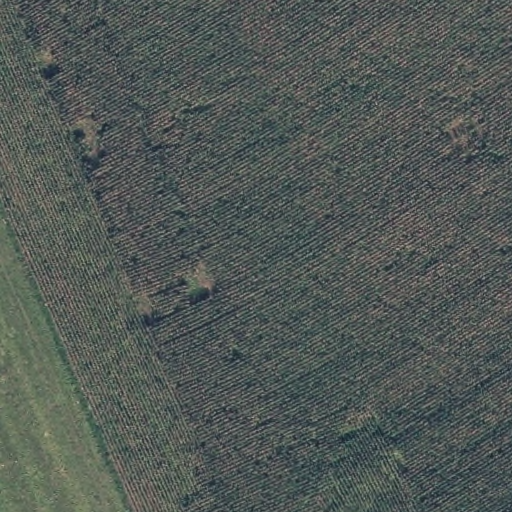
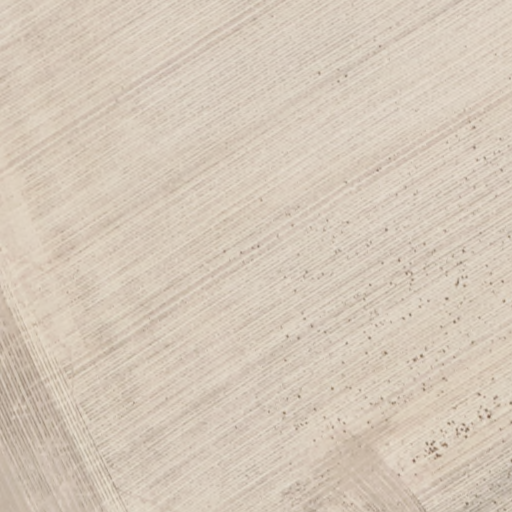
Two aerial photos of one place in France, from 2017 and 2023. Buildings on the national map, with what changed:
[]

